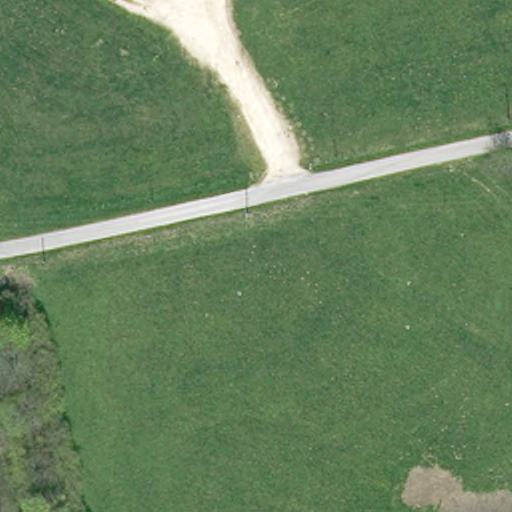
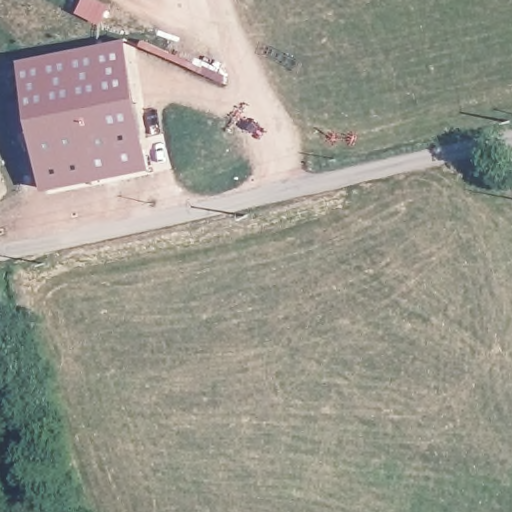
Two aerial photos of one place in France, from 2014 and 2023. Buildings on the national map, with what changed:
new [(156,171),(49,189),(23,60),(137,45),(156,171)]

